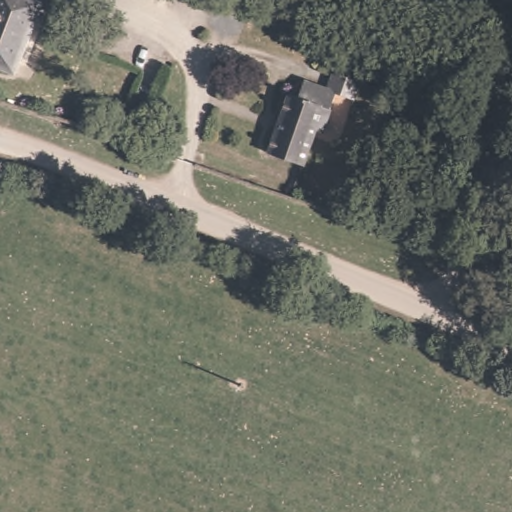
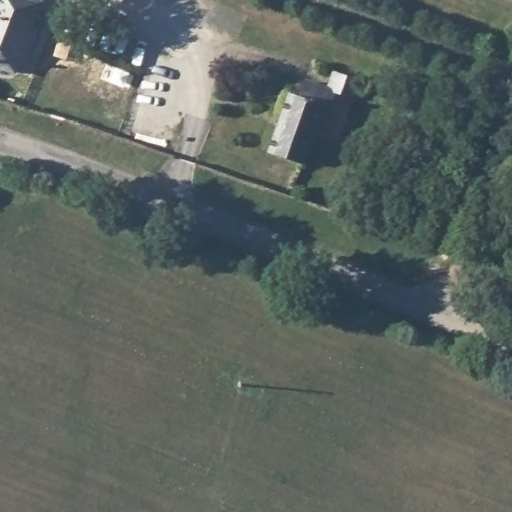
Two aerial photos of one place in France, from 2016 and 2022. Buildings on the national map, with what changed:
unchanged [(19,69),(0,62),(0,0),(46,0),(19,69)]
unchanged [(367,81),(360,101),(338,94),(323,133),(311,128),(299,160),(263,146),(285,88),(294,92),(302,75),(320,83),(329,65),(367,81)]

